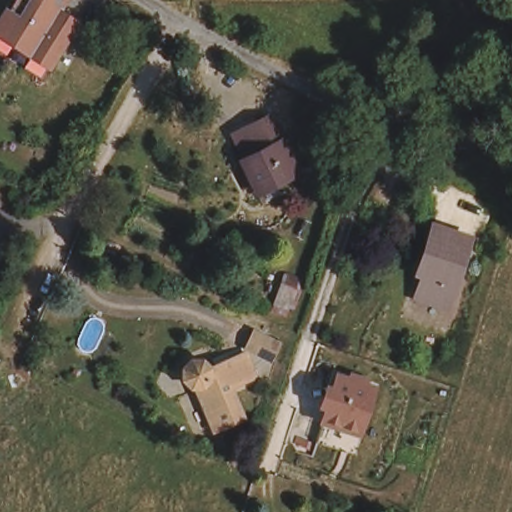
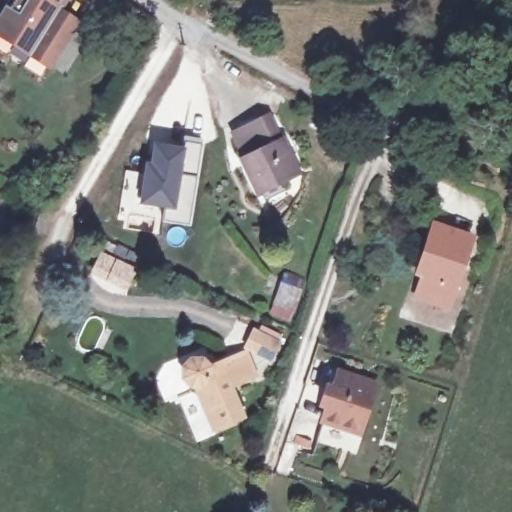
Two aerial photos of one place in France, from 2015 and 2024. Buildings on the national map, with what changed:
unchanged [(59,15),(31,59),(23,70),(6,59),(13,47),(0,39),(0,0),(44,0),(41,4),(59,15)]
unchanged [(267,205),(233,154),(266,132),(281,155),(285,153),(305,182),(267,205)]
new [(150,163),(153,143),(182,148),(183,137),(202,141),(188,223),(165,220),(166,208),(140,205),(145,163),(150,163)]
unchanged [(411,296),(423,260),(417,258),(428,226),(468,238),(446,307),(411,296)]
unchanged [(293,303),(280,300),(285,281),(299,285),(293,303)]
unchanged [(284,339),(278,357),(247,347),(253,329),(284,339)]
unchanged [(191,385),(187,379),(187,372),(190,366),(197,362),(203,362),(208,364),(212,367),(247,353),(257,376),(231,387),(245,418),(216,430),(198,389),(191,385)]
unchanged [(326,422),(338,387),(332,385),(338,368),(357,374),(372,379),(370,385),(377,387),(361,434),(326,422)]

